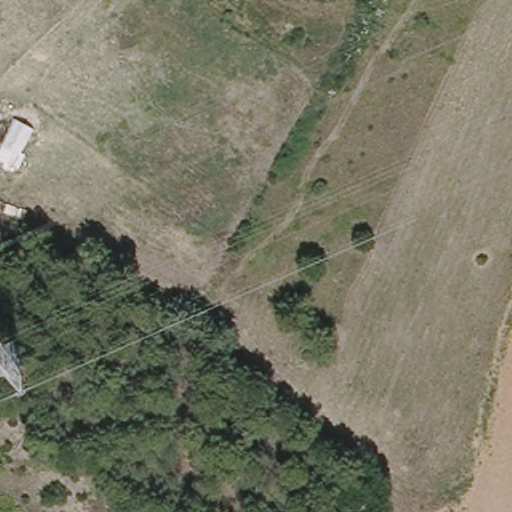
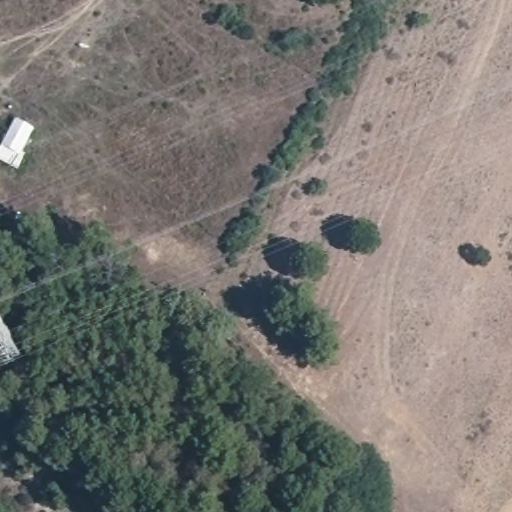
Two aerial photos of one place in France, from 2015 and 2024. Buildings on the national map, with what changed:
unchanged [(0,164),(0,144),(8,146),(0,164)]

